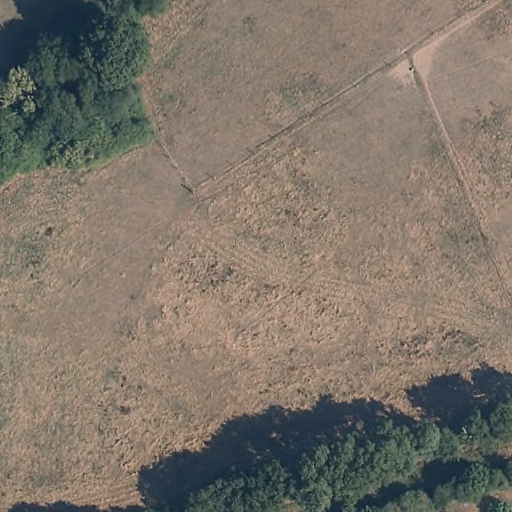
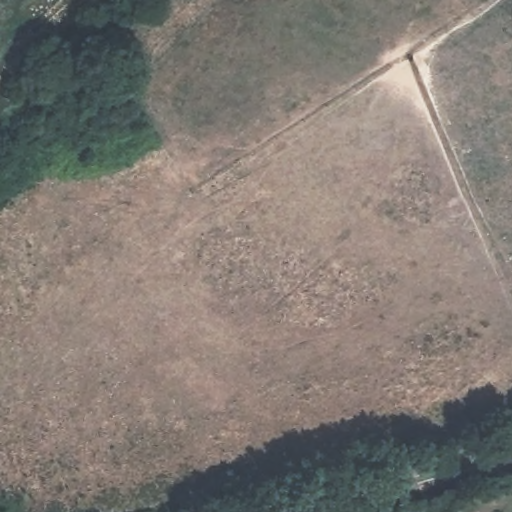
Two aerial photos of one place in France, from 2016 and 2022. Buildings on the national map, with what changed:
[]

